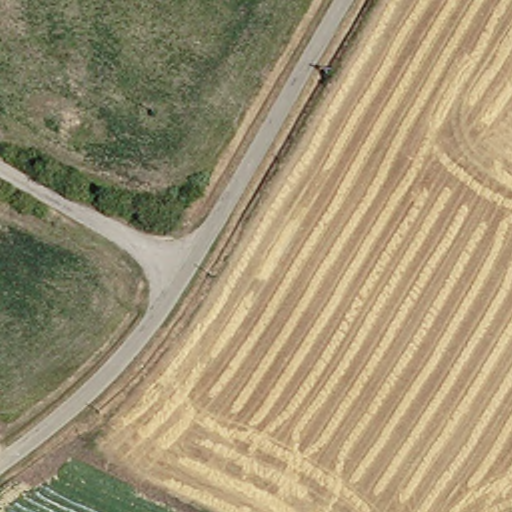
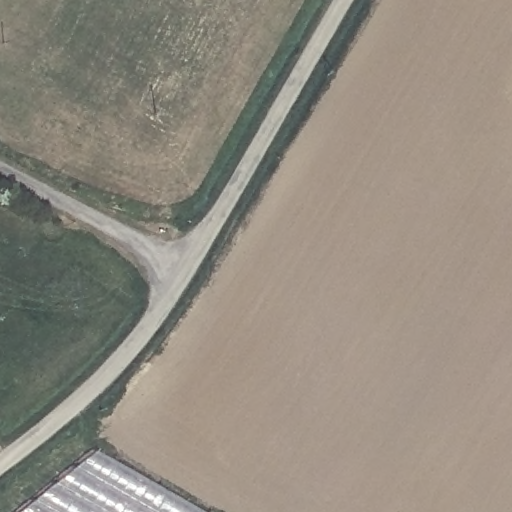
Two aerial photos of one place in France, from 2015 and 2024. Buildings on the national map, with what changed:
new [(93,451),(200,512),(19,512),(93,451)]

